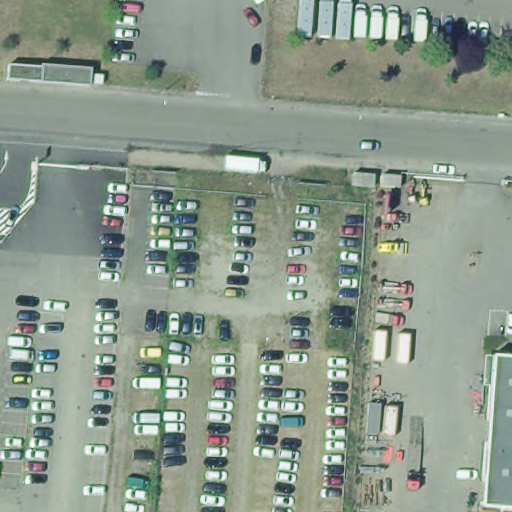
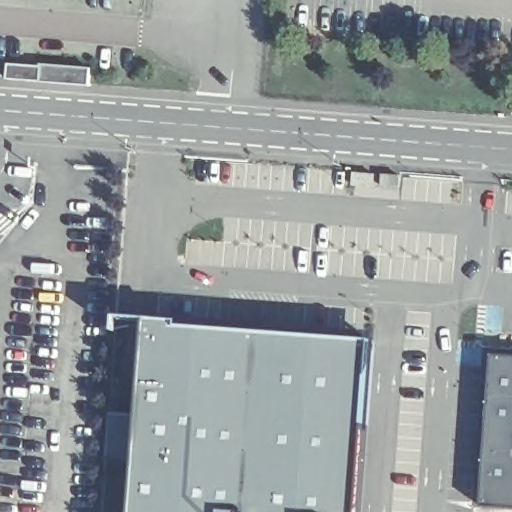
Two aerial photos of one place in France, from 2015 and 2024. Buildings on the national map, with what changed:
unchanged [(91,69),(90,86),(41,82),(7,80),(8,65),(42,67),(42,65),(91,69)]
new [(359,512),(134,512),(150,325),(372,341),(359,512)]
unchanged [(512,356),(512,509),(481,507),(493,355),(512,356)]

